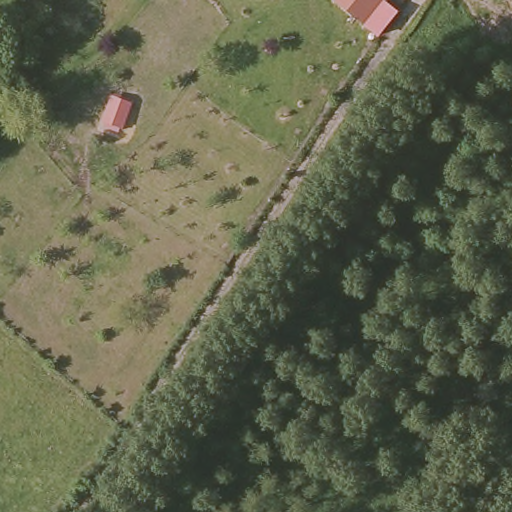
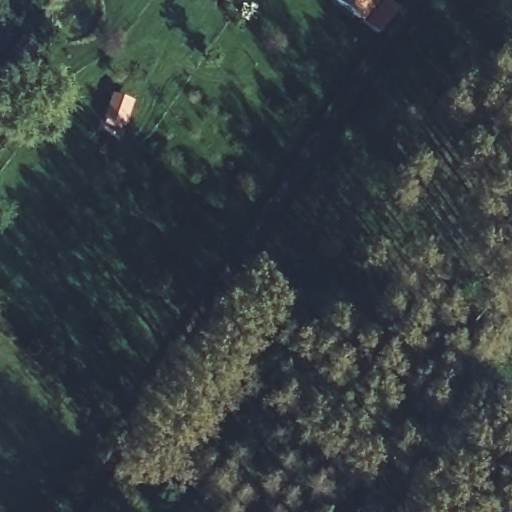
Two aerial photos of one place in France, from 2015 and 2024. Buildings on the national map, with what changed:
unchanged [(377,36),(334,0),(385,0),(399,11),(377,36)]

